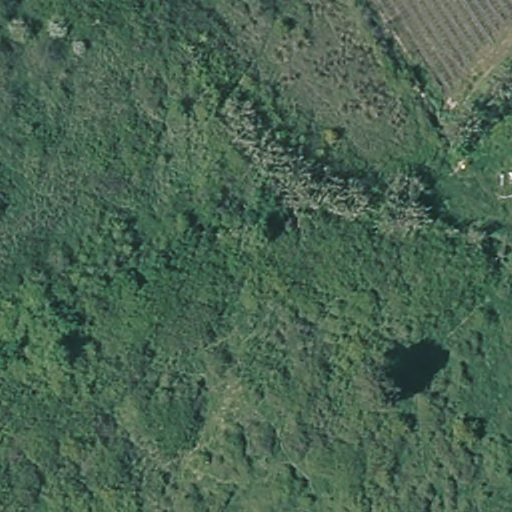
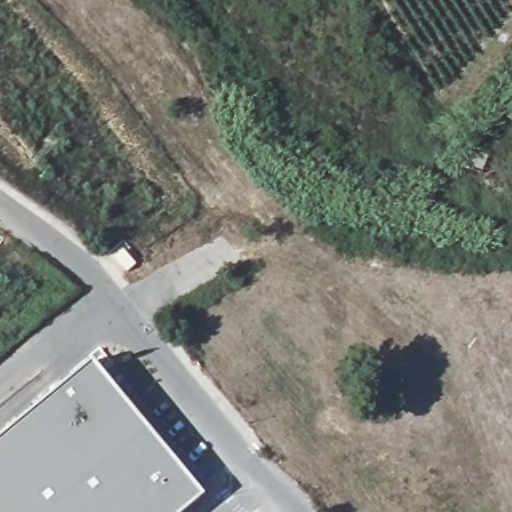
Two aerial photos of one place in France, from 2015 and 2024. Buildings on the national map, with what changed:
new [(186,512),(0,512),(0,441),(91,364),(204,497),(186,512)]

